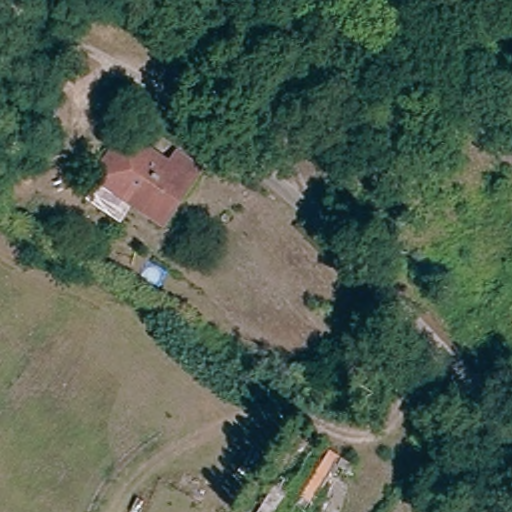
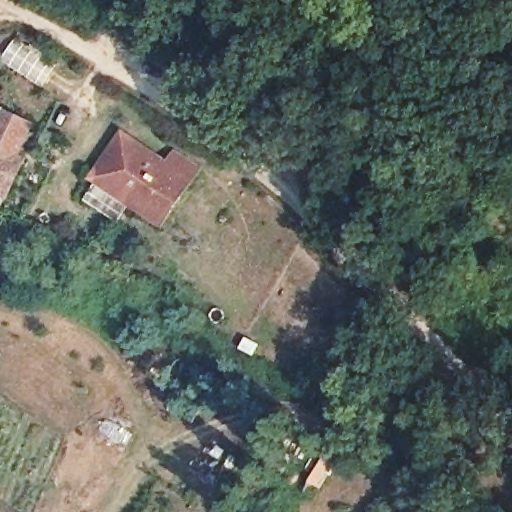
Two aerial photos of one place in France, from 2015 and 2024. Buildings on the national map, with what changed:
new [(22,154),(28,158),(10,200),(0,196),(0,106),(35,124),(22,154)]
unchanged [(177,159),(201,175),(194,186),(162,233),(94,188),(127,141),(169,169),(177,159)]
unchanged [(336,467),(308,510),(307,512),(263,512),(307,446),(336,467)]

